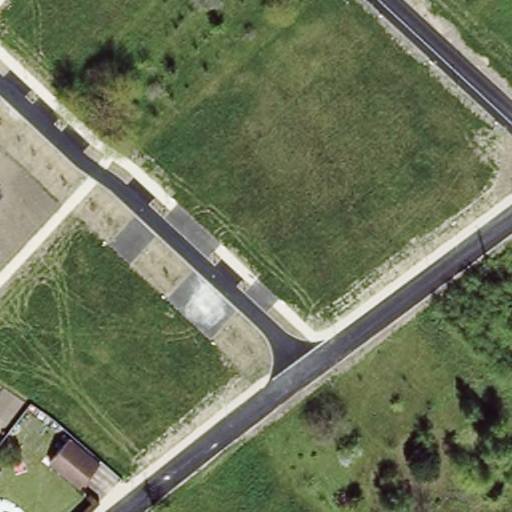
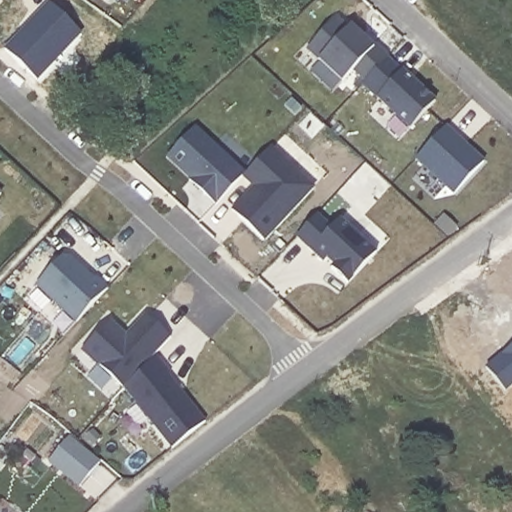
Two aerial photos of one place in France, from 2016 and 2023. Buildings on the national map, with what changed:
new [(337,17),(346,30),(350,25),(377,48),(387,58),(363,84),(350,75),(342,84),(318,60),(305,50),(337,17)]
new [(387,58),(402,71),(402,70),(435,101),(410,128),(363,84),(387,58)]
new [(251,187),(242,179),(215,206),(189,181),(190,180),(166,159),(195,127),(246,173),(271,147),(315,187),(265,241),(230,210),(251,187)]
new [(446,127),(483,162),(453,196),(415,162),(446,127)]
unchanged [(0,196),(0,189),(3,192),(0,196)]
new [(317,214),(330,228),(338,220),(375,255),(346,285),(296,237),(317,214)]
new [(62,256),(72,256),(109,286),(77,323),(36,287),(62,256)]
new [(125,336),(132,330),(146,315),(170,337),(157,352),(125,386),(123,388),(82,350),(108,320),(125,336)]
new [(157,352),(172,372),(170,373),(207,420),(173,446),(125,386),(157,352)]
unchanged [(75,483),(44,457),(50,451),(62,436),(93,462),(80,476),(75,483)]

